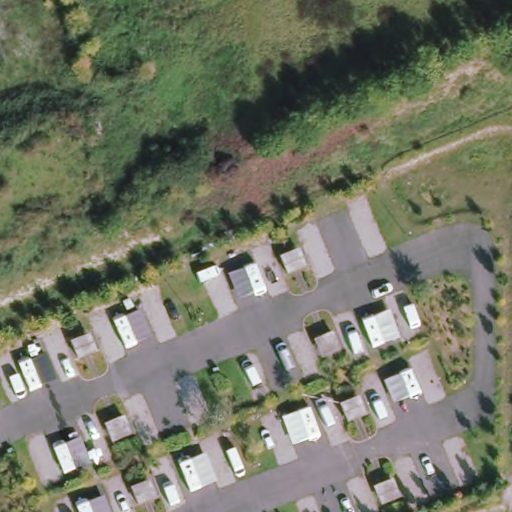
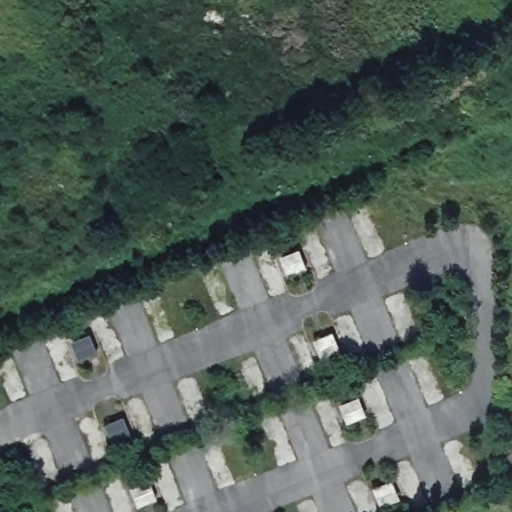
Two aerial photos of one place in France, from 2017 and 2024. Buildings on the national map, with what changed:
unchanged [(289,276),(285,267),(282,257),(300,251),(303,260),(306,270),(289,276)]
unchanged [(321,359),(318,351),(315,341),(333,335),(336,344),(340,353),(321,359)]
unchanged [(80,360),(76,352),(72,343),(91,336),(95,344),(98,353),(80,360)]
unchanged [(346,423),(343,415),(340,406),(359,399),(362,408),(365,417),(346,423)]
unchanged [(112,443),(108,435),(105,426),(125,418),(128,427),(131,436),(112,443)]
unchanged [(138,508),(134,498),(130,489),(150,482),(153,491),(156,501),(138,508)]
unchanged [(383,505),(380,506),(377,498),(375,489),(383,486),(392,483),(395,492),(398,500),(383,505)]

